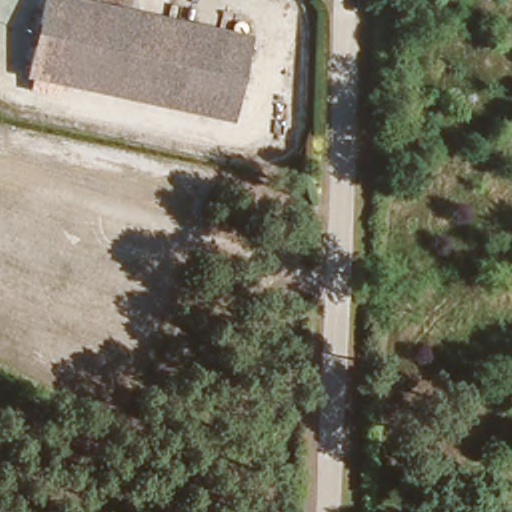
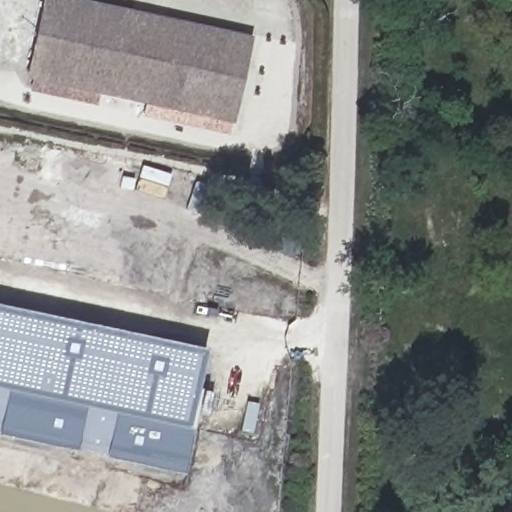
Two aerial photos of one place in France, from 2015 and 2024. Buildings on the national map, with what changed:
unchanged [(230,125),(24,79),(40,0),(57,0),(249,41),(230,125)]
new [(207,350),(183,473),(0,435),(0,306),(207,350)]

